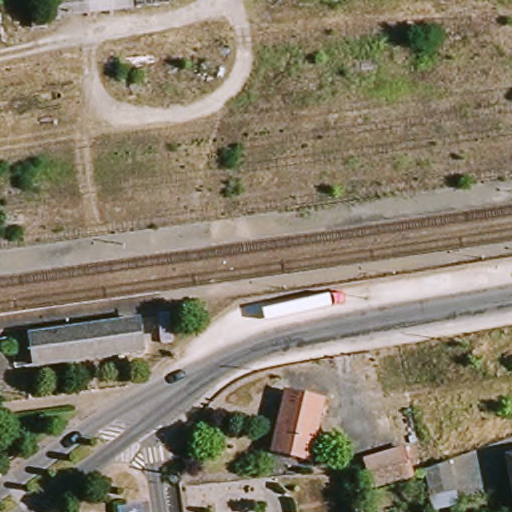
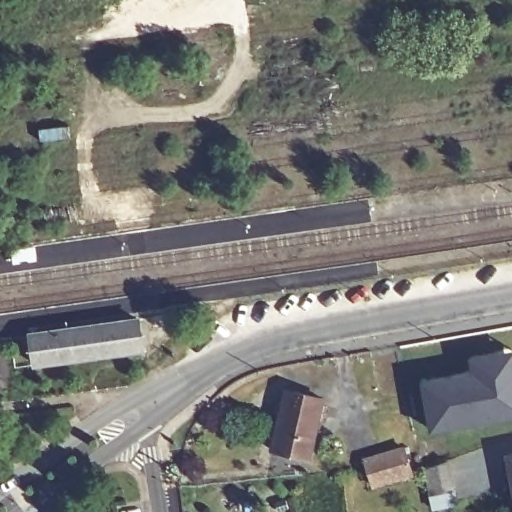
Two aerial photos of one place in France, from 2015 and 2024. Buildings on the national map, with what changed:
demolished [(55,0),(168,0),(169,5),(45,19),(44,25),(34,28),(30,4),(55,0)]
unchanged [(140,319),(144,353),(35,368),(27,335),(140,319)]
new [(470,358),(512,351),(512,417),(431,432),(423,383),(472,372),(470,358)]
unchanged [(270,452),(285,392),(322,402),(307,461),(270,452)]
unchanged [(364,461),(387,456),(403,452),(410,477),(371,487),(364,461)]
unchanged [(507,461),(507,457),(512,456),(512,485),(507,461)]
unchanged [(457,507),(437,512),(432,512),(422,471),(448,464),(457,507)]

